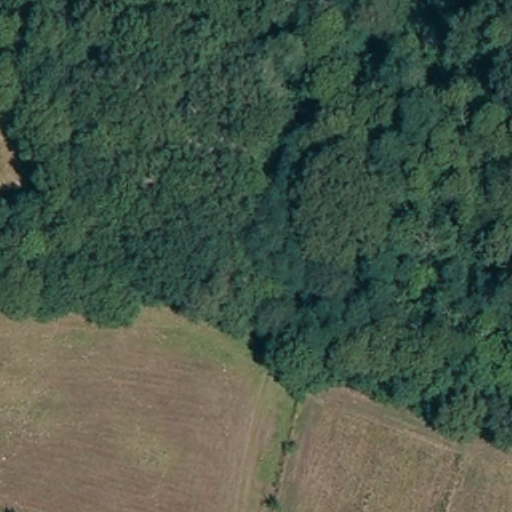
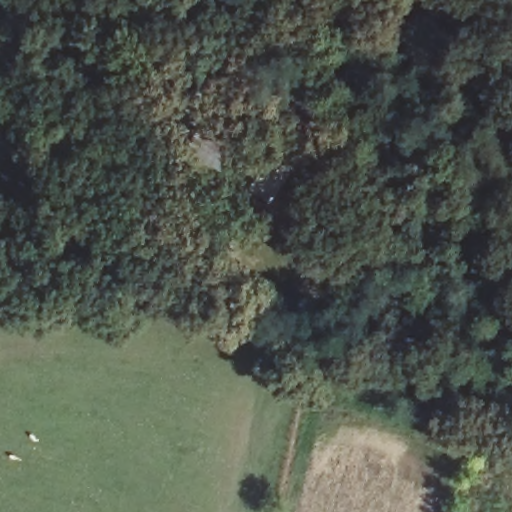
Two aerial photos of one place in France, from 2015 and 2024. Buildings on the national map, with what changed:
unchanged [(209,70),(237,89),(216,124),(248,145),(225,180),(161,137),(209,70)]

